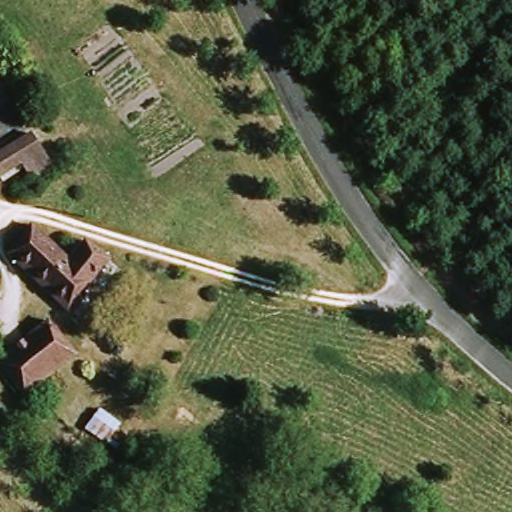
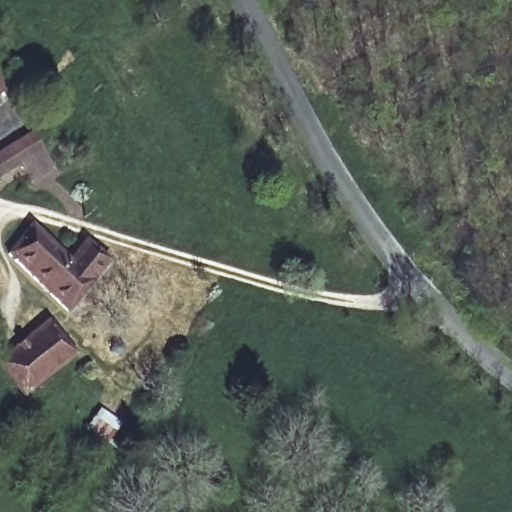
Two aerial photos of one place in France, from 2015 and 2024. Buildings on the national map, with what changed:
unchanged [(0,96),(0,86),(5,94),(0,96)]
unchanged [(44,156),(0,181),(0,157),(33,137),(44,156)]
unchanged [(82,256),(102,272),(69,311),(0,260),(0,257),(18,238),(67,273),(82,256)]
unchanged [(0,364),(42,324),(72,354),(29,395),(0,368),(0,364)]

